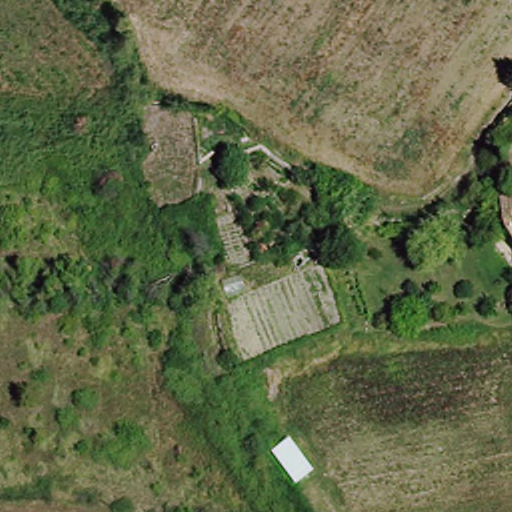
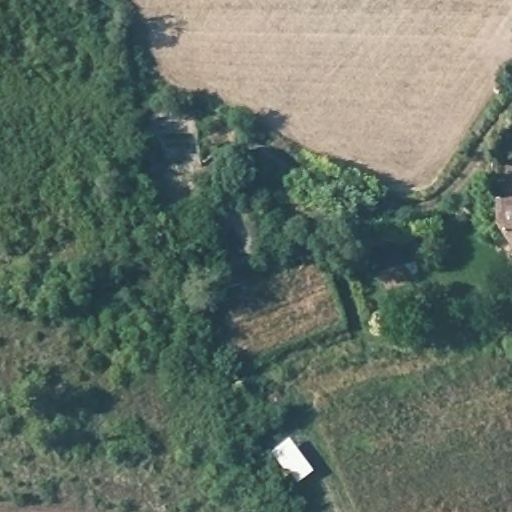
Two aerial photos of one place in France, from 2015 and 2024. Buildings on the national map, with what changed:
unchanged [(227,160),(220,164),(215,158),(221,154),(227,160)]
unchanged [(499,208),(512,206),(512,243),(502,229),(499,209),(499,208)]

